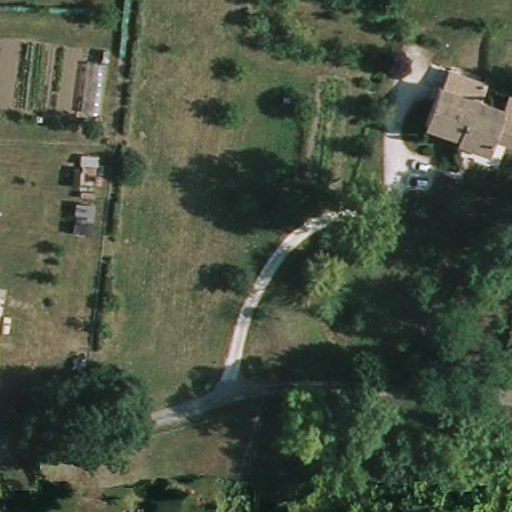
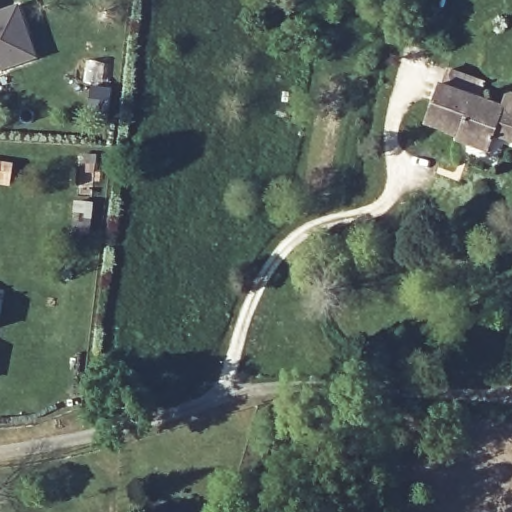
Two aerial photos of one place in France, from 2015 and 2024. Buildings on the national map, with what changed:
new [(17,7),(35,59),(0,71),(0,13),(17,7)]
unchanged [(458,133),(424,121),(438,82),(503,105),(507,92),(512,95),(512,145),(492,137),(488,148),(457,137),(458,133)]
new [(12,163),(10,183),(0,182),(0,162),(12,163)]

